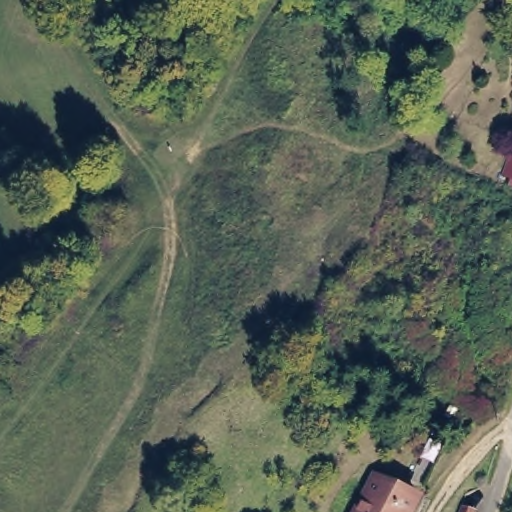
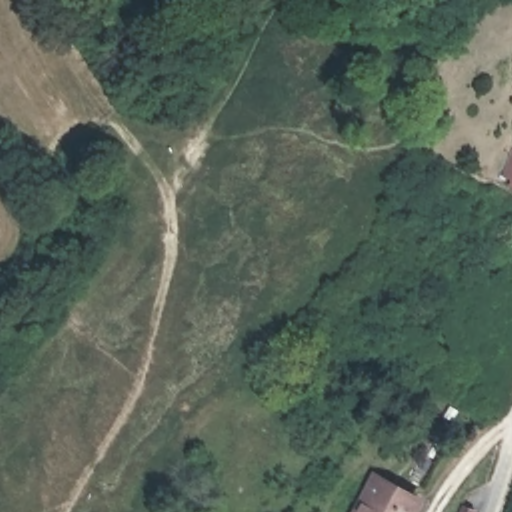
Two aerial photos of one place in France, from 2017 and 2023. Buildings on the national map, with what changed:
unchanged [(419,512),(365,512),(382,478),(425,500),(419,512)]
unchanged [(462,509),(472,512),(461,512),(462,509)]

